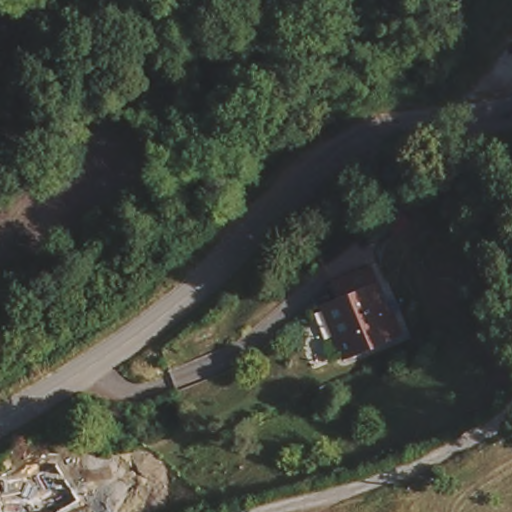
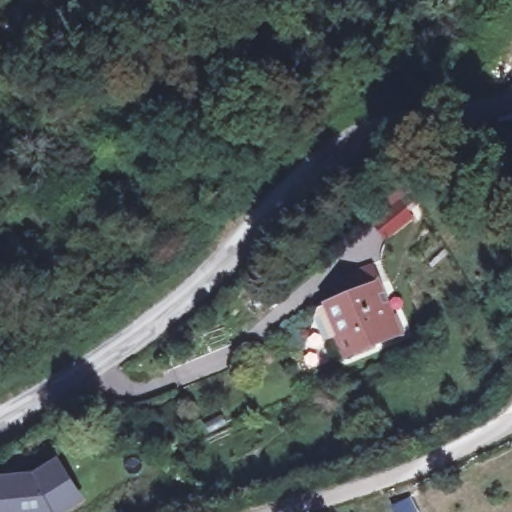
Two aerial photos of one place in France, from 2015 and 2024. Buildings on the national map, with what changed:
unchanged [(385,300),(377,304),(385,325),(393,322),(400,341),(348,363),(340,345),(345,343),(332,311),(343,307),(336,289),(374,273),(385,300)]
new [(0,509),(0,480),(35,476),(58,462),(80,500),(60,512),(0,512),(0,509)]

